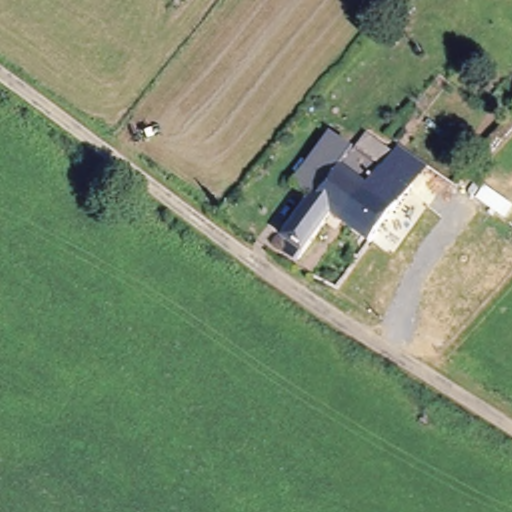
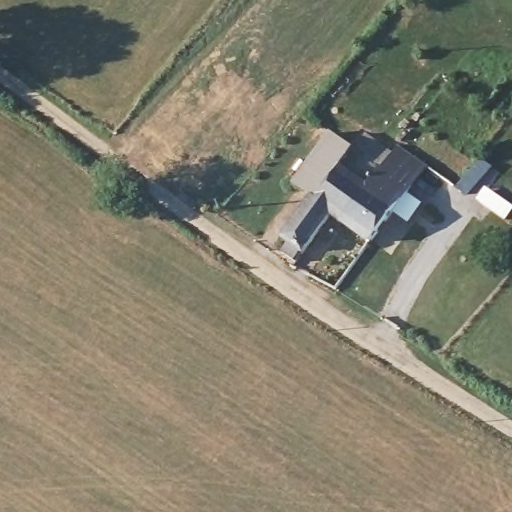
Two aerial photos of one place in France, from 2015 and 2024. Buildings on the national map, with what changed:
unchanged [(333,213),(296,257),(283,247),(290,239),(283,232),(311,197),(287,180),(326,125),(353,144),(365,126),(394,146),(381,164),(407,183),(367,241),(343,222),(333,213)]

